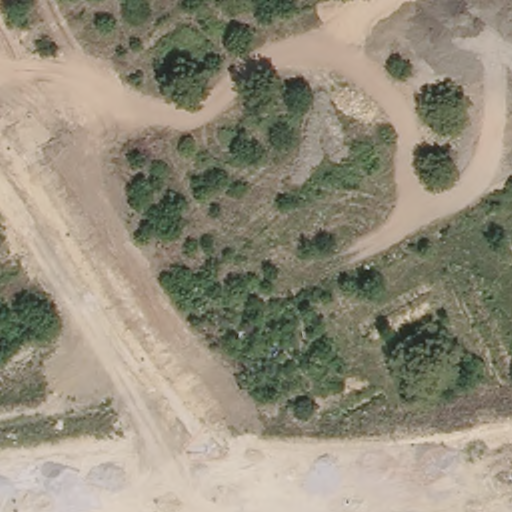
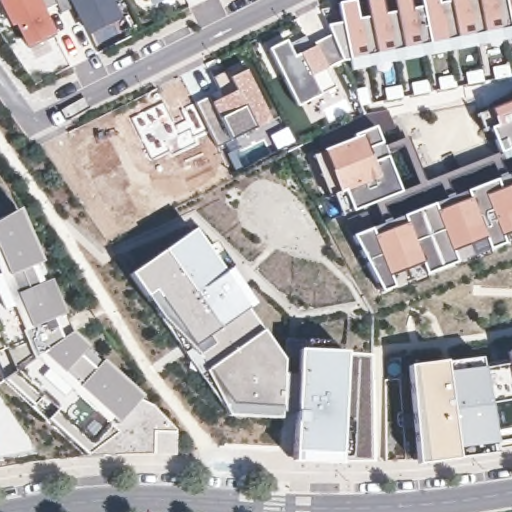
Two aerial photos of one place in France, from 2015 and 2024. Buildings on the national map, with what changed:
new [(44,11),(55,32),(29,46),(17,23),(14,25),(1,0),(56,0),(58,3),(44,11)]
new [(91,15),(89,11),(81,15),(76,5),(62,12),(58,3),(56,0),(110,0),(112,4),(91,15)]
new [(339,2),(351,0),(356,0),(360,18),(370,16),(367,0),(384,0),(387,13),(397,11),(395,0),(412,0),(414,7),(423,6),(422,0),(440,0),(440,2),(450,1),(450,0),(512,0),(512,27),(343,60),(329,24),(343,21),(339,2)]
new [(286,41),(287,44),(306,36),(311,45),(333,35),(343,60),(327,68),(337,89),(321,97),(297,108),(268,50),(286,41)]
new [(186,121),(181,110),(194,103),(208,97),(210,102),(234,90),(230,83),(220,89),(214,77),(238,66),(240,70),(245,67),(272,121),(255,129),(245,134),(231,141),(222,146),(218,147),(209,132),(195,139),(198,145),(171,157),(168,152),(151,160),(132,118),(163,102),(174,126),(186,121)]
new [(500,125),(494,109),(512,102),(512,149),(502,154),(491,127),(500,125)]
new [(387,110),(395,127),(378,135),(374,127),(354,135),(355,140),(325,150),(341,192),(347,190),(354,210),(341,216),(333,194),(329,196),(313,156),(308,143),(365,114),(387,110)]
new [(355,140),(354,135),(374,127),(400,191),(354,210),(347,190),(341,192),(325,150),(355,140)]
new [(512,173),(512,231),(502,236),(504,242),(490,247),(485,237),(455,250),(459,260),(426,272),(422,262),(390,276),(394,287),(382,291),(352,236),(512,173)]
new [(21,208),(73,330),(146,392),(121,421),(116,417),(113,421),(122,428),(101,443),(17,371),(0,332),(0,217),(10,212),(21,208)]
new [(194,229),(285,364),(285,353),(374,353),(374,380),(375,462),(351,462),(293,461),(296,412),(282,412),(282,418),(229,415),(130,273),(194,229)]
new [(101,443),(90,451),(6,378),(0,364),(0,332),(17,371),(101,443)]
new [(408,365),(445,361),(482,357),(483,368),(511,365),(509,352),(512,351),(512,432),(495,436),(498,453),(457,459),(417,465),(417,459),(388,462),(388,360),(408,365)]
new [(179,451),(158,451),(90,451),(101,443),(122,428),(113,421),(116,417),(121,421),(146,392),(157,401),(180,427),(179,451)]

